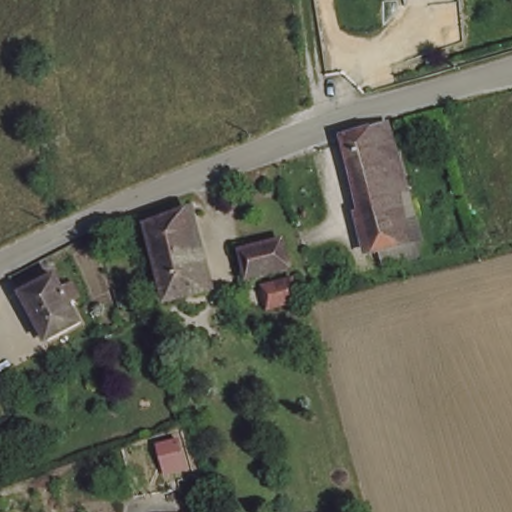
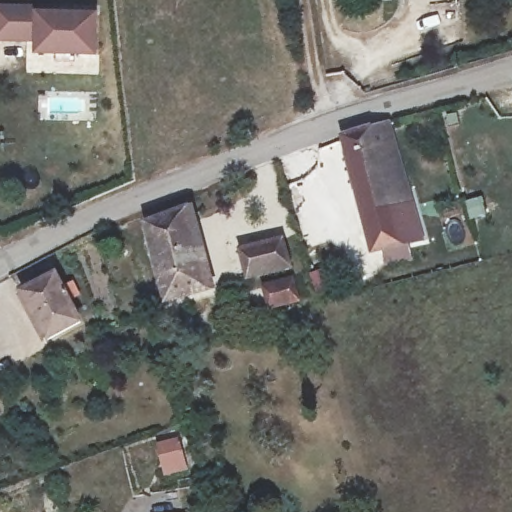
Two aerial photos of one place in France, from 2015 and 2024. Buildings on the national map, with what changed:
new [(0,8),(61,9),(61,15),(100,16),(98,55),(40,53),(41,41),(30,40),(0,40),(0,8)]
unchanged [(397,123),(417,187),(399,195),(412,232),(371,246),(361,220),(362,210),(340,142),(397,123)]
unchanged [(189,206),(212,297),(171,308),(147,222),(189,206)]
unchanged [(294,267),(250,281),(242,257),(286,243),(294,267)]
unchanged [(50,348),(22,293),(55,276),(82,332),(50,348)]
unchanged [(305,302),(279,311),(272,292),(299,283),(305,302)]

